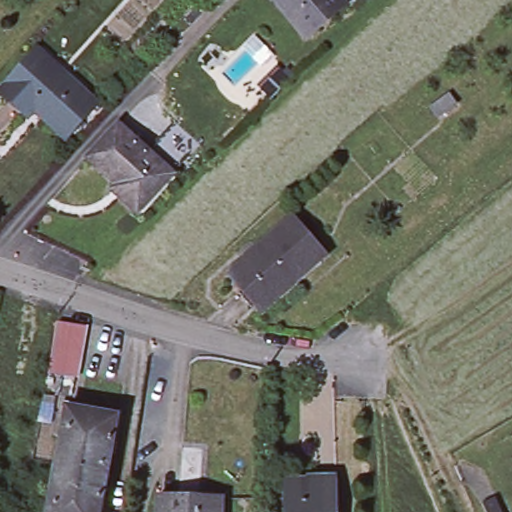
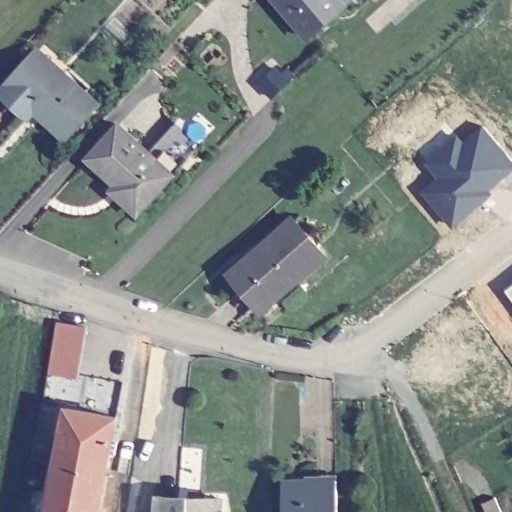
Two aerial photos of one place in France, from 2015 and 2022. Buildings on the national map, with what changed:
unchanged [(276,1),(278,0),(332,0),(340,9),(307,37),(276,1)]
unchanged [(0,92),(0,90),(31,56),(57,81),(64,74),(97,103),(65,138),(34,109),(27,117),(0,92)]
unchanged [(123,190),(87,158),(118,124),(172,174),(137,213),(118,195),(123,190)]
new [(425,164),(457,136),(464,142),(482,127),(512,164),(512,171),(487,191),(490,196),(452,228),(420,194),(437,179),(425,164)]
unchanged [(325,255),(292,282),(287,276),(270,291),(272,292),(255,305),(228,273),(247,257),(248,258),(268,241),(267,240),(292,217),(325,255)]
new [(512,302),(505,293),(512,288),(512,302)]
unchanged [(77,376),(47,372),(57,322),(87,326),(77,376)]
unchanged [(67,407),(117,416),(105,475),(56,465),(67,407)]
unchanged [(105,475),(99,512),(48,512),(56,465),(105,475)]
unchanged [(337,512),(287,512),(286,481),(337,479),(337,512)]
unchanged [(220,512),(157,512),(157,496),(220,498),(220,512)]
unchanged [(495,496),(502,512),(486,512),(482,502),(495,496)]

